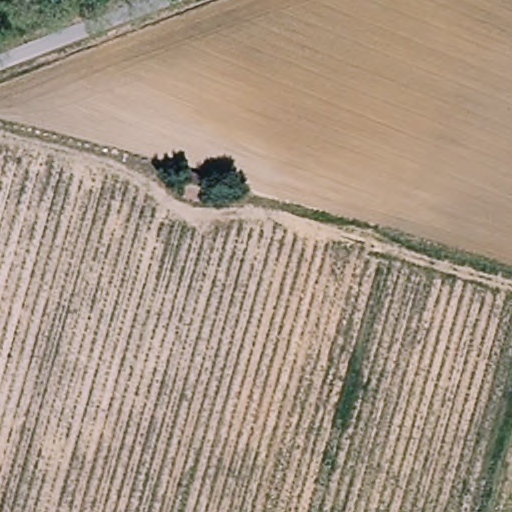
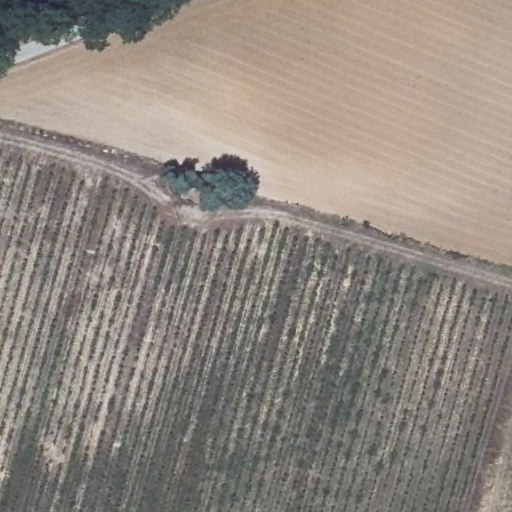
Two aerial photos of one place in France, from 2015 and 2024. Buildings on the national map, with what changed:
unchanged [(209,180),(203,203),(180,197),(186,173),(209,180)]

